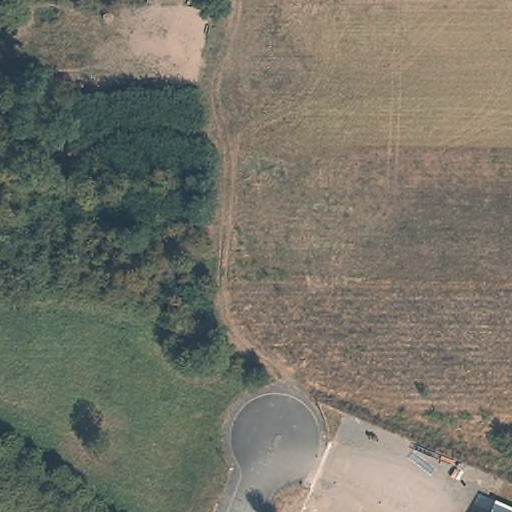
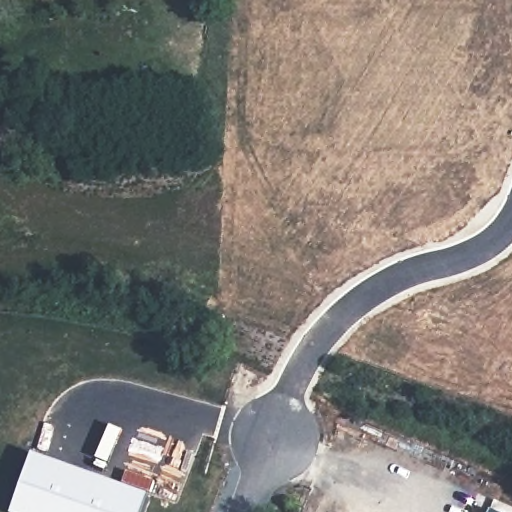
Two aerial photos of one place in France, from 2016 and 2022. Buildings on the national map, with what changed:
new [(33,453),(148,496),(142,512),(12,512),(33,453)]

